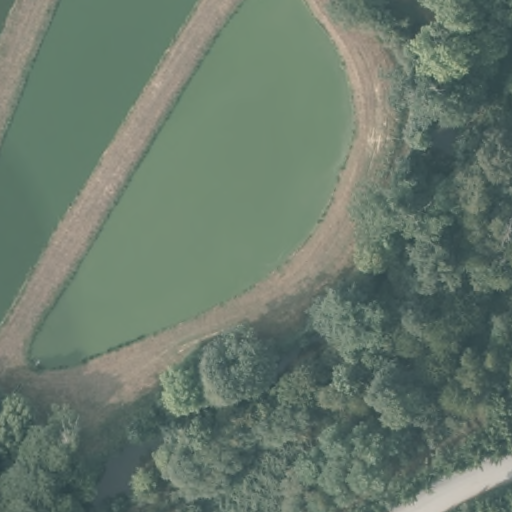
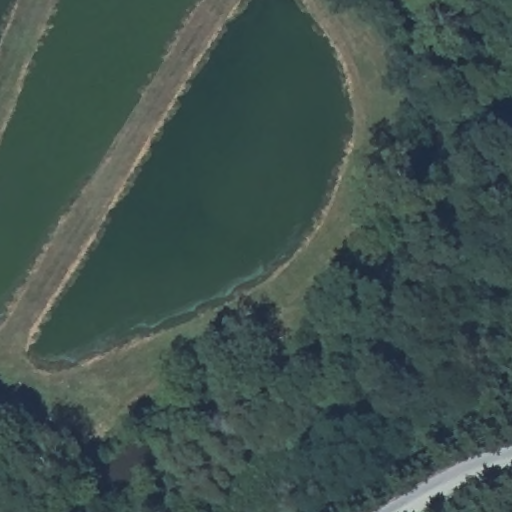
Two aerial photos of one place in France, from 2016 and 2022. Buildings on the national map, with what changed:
[]

